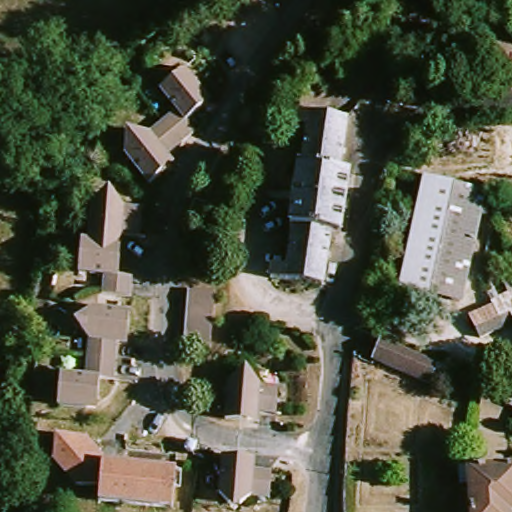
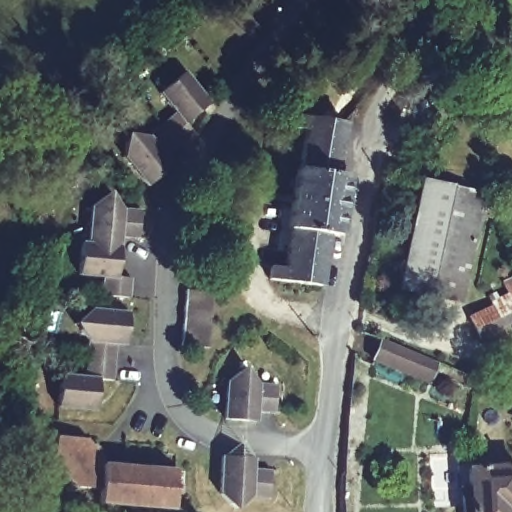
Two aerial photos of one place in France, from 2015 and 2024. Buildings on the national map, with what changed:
unchanged [(121,154),(121,131),(143,132),(170,111),(154,91),(178,69),(205,101),(182,121),(190,132),(162,155),(167,163),(145,182),(121,154)]
unchanged [(502,88),(500,74),(510,73),(510,77),(512,76),(512,86),(511,87),(502,88)]
unchanged [(288,113),(340,120),(334,173),(344,175),(335,235),(325,234),(319,282),(266,276),(268,264),(282,265),(287,225),(283,225),(291,166),(296,166),(300,134),(290,132),(290,126),(287,125),(288,113)]
unchanged [(395,283),(416,175),(477,188),(487,209),(482,208),(471,205),(461,257),(455,295),(395,283)]
unchanged [(120,205),(137,206),(135,235),(118,234),(115,276),(127,277),(125,295),(96,292),(98,275),(76,273),(78,240),(85,241),(88,203),(105,188),(120,205)]
unchanged [(473,332),(462,310),(464,309),(485,299),(483,292),(489,289),(492,296),(505,290),(500,278),(512,272),(512,322),(508,315),(473,332)]
unchanged [(178,343),(182,286),(211,289),(206,345),(178,343)]
unchanged [(109,378),(95,376),(93,407),(54,403),(56,371),(81,374),(84,339),(70,319),(86,306),(125,310),(122,341),(112,340),(109,378)]
unchanged [(380,335),(436,358),(428,376),(372,354),(380,335)]
unchanged [(239,362),(252,380),(273,382),(270,410),(251,408),(250,418),(222,416),(224,376),(225,374),(239,362)]
unchanged [(512,403),(512,417),(506,414),(512,403)]
unchanged [(174,464),(171,505),(96,501),(97,484),(72,481),(46,458),(48,432),(76,434),(99,453),(98,460),(174,464)]
unchanged [(247,454),(247,464),(266,466),(263,494),(245,492),(226,507),(215,492),(218,452),(247,454)]
unchanged [(451,511),(450,486),(456,484),(455,466),(505,462),(508,503),(512,504),(512,512),(458,512),(458,511),(451,511)]

